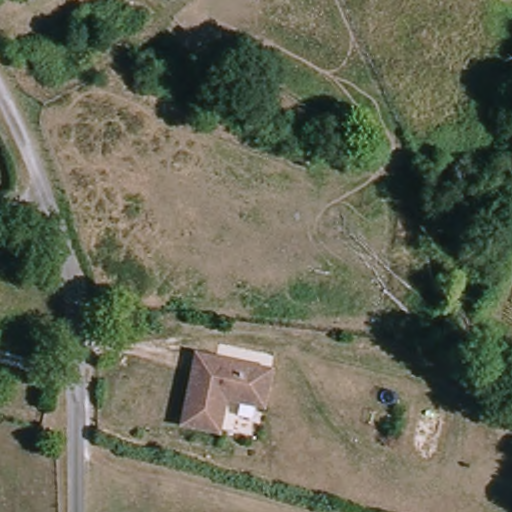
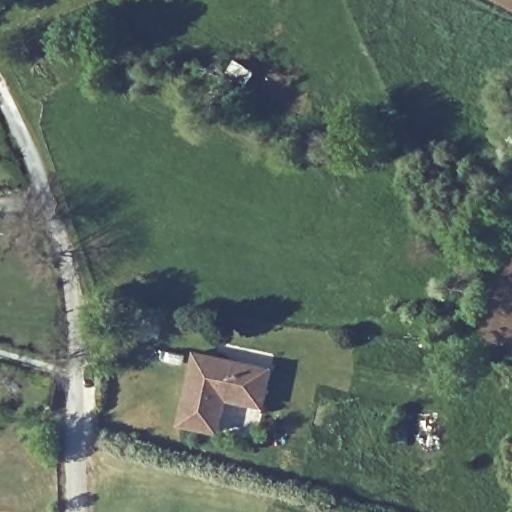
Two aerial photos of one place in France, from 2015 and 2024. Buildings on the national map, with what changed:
unchanged [(230,401),(223,434),(186,427),(200,356),(276,371),(269,409),(230,401)]

